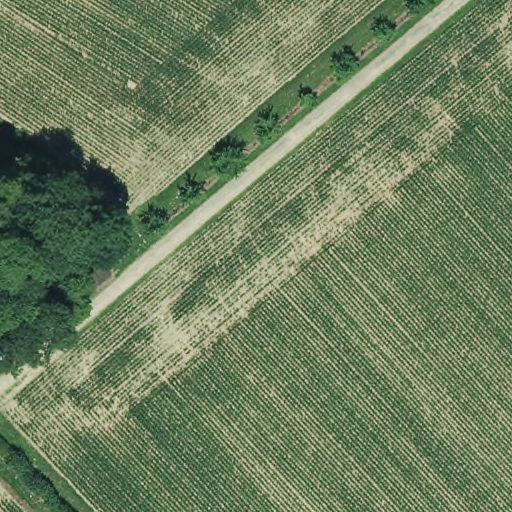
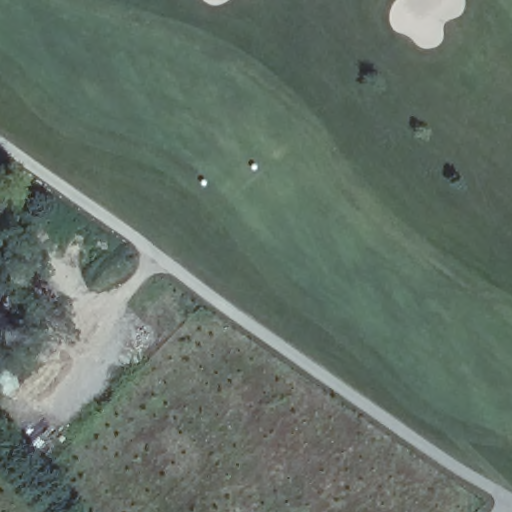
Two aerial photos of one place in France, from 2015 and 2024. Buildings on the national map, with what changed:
unchanged [(67,271),(95,249),(111,273),(80,294),(67,271)]

